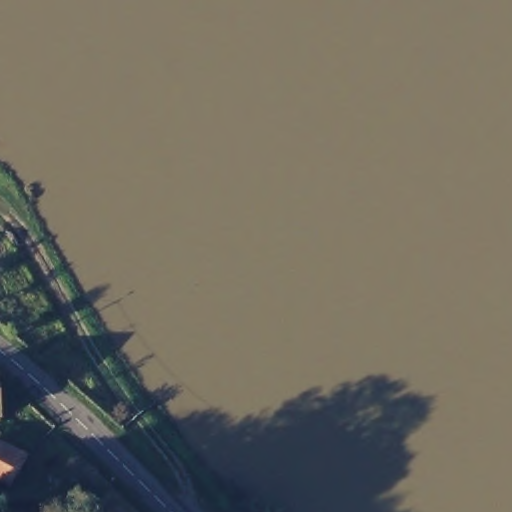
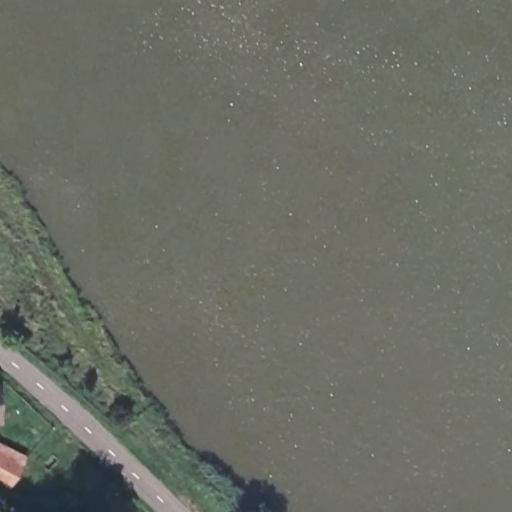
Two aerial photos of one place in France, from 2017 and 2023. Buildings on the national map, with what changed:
unchanged [(10,480),(0,475),(0,445),(25,459),(10,480)]

